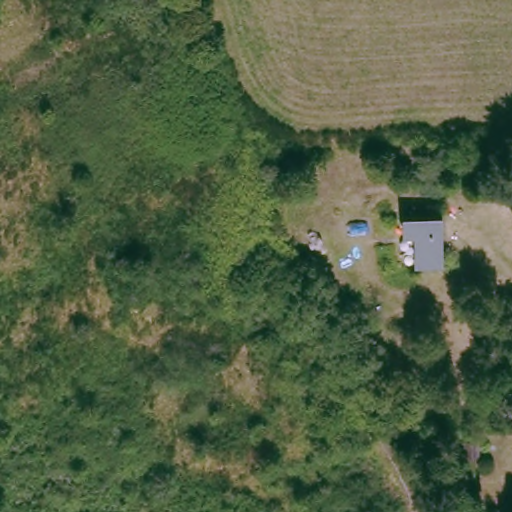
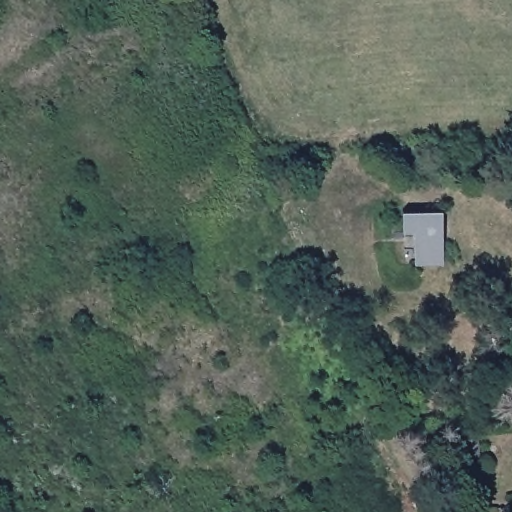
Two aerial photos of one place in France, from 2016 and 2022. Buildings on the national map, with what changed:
unchanged [(439,262),(410,262),(409,232),(399,233),(398,212),(437,211),(439,262)]

